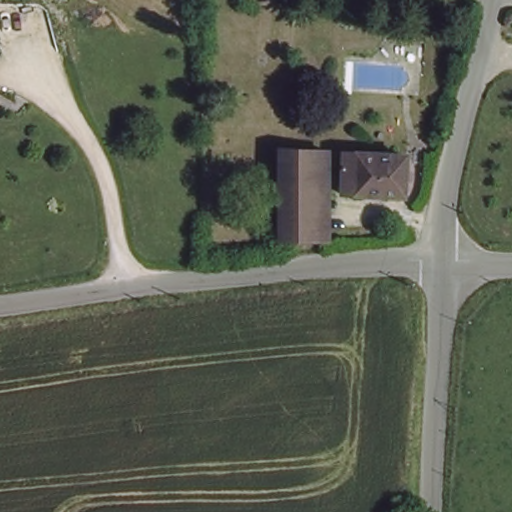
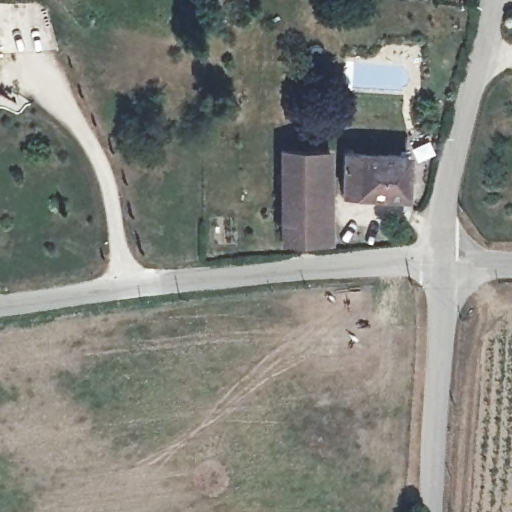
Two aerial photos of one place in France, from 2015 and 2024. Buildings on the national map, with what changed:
unchanged [(285,153),(335,155),(330,212),(322,213),(319,248),(282,252),(285,153)]
unchanged [(346,198),(346,155),(409,158),(405,200),(346,198)]

